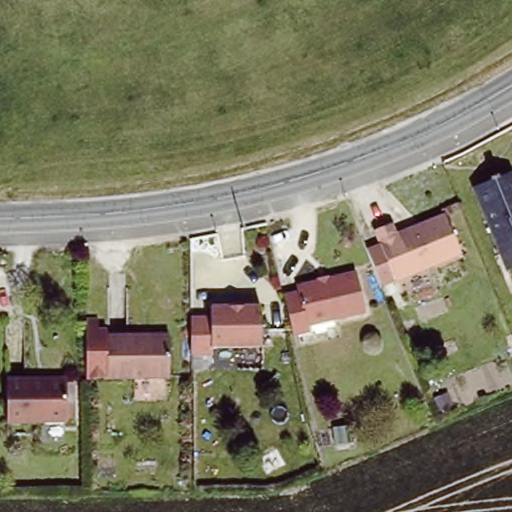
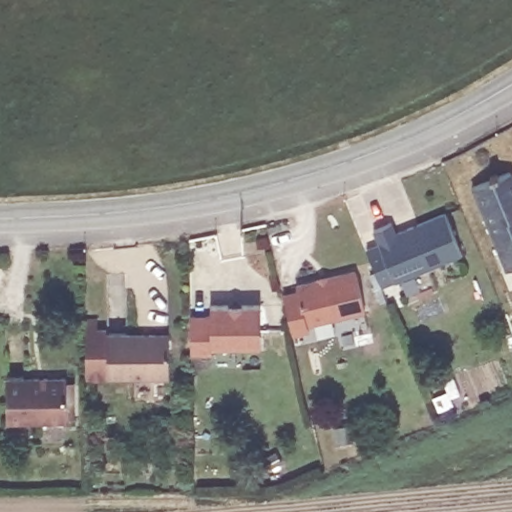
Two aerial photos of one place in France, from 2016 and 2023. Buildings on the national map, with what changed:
unchanged [(507,172),(512,183),(512,202),(512,268),(505,271),(471,188),(507,172)]
unchanged [(393,224),(398,235),(447,215),(463,254),(397,281),(377,230),(393,224)]
unchanged [(301,292),(300,287),(360,272),(368,312),(311,326),(312,332),(295,336),(286,296),(301,292)]
unchanged [(212,316),(212,305),(262,305),(263,345),(215,345),(215,353),(193,353),(193,317),(212,316)]
unchanged [(172,335),(172,377),(110,378),(110,336),(172,335)]
unchanged [(65,374),(65,418),(5,418),(5,375),(65,374)]

